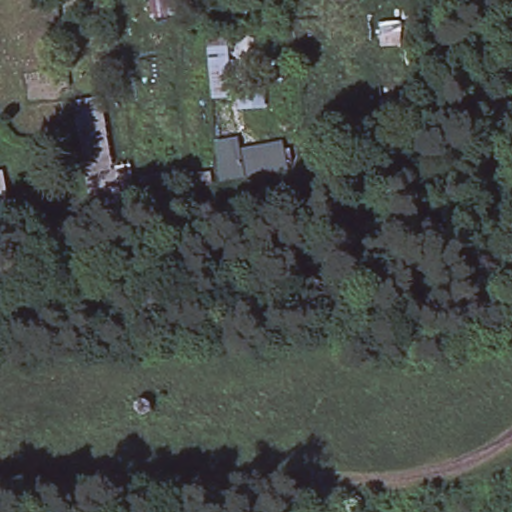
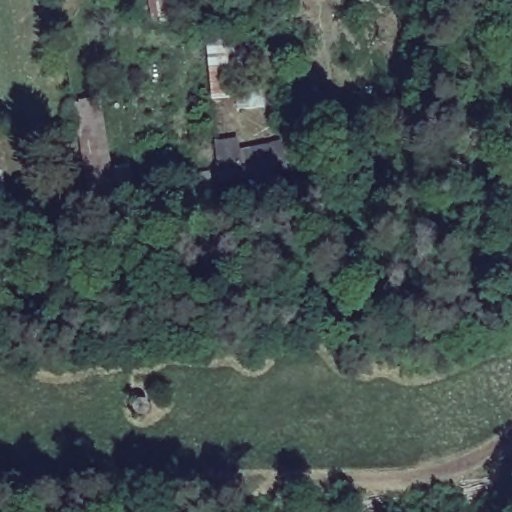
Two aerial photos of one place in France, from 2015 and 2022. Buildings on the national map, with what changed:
unchanged [(170,15),(156,16),(155,0),(169,0),(170,15)]
unchanged [(230,48),(237,101),(211,102),(208,52),(230,48)]
unchanged [(400,62),(402,99),(408,99),(410,113),(396,113),(396,104),(381,105),(377,61),(400,62)]
unchanged [(262,87),(266,110),(246,113),(242,90),(262,87)]
unchanged [(237,135),(240,146),(282,139),(285,150),(289,149),(292,168),(220,182),(213,141),(237,135)]
unchanged [(377,146),(378,153),(370,154),(370,146),(377,146)]
unchanged [(96,167),(107,166),(111,195),(100,197),(96,167)]
unchanged [(5,177),(11,209),(0,210),(0,177),(5,177)]
unchanged [(36,183),(39,198),(24,201),(22,186),(36,183)]
unchanged [(128,196),(128,202),(121,202),(120,197),(128,196)]
unchanged [(23,221),(38,218),(40,225),(25,228),(23,221)]

